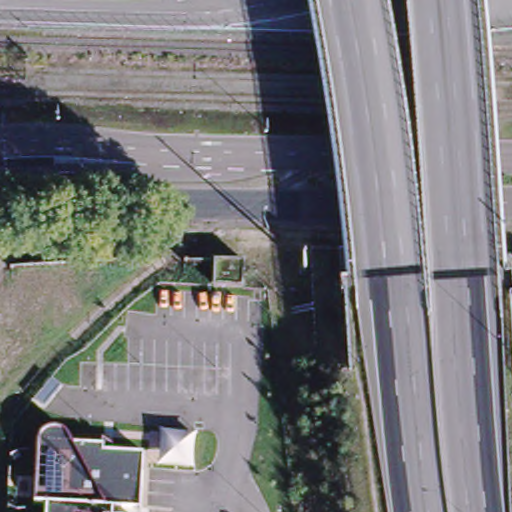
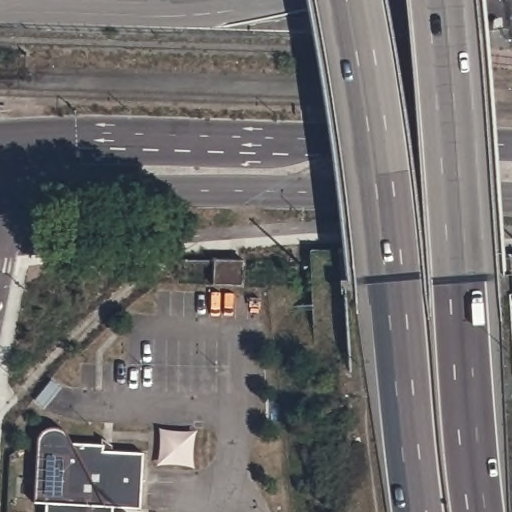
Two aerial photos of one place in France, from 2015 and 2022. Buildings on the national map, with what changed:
unchanged [(242,286),(212,286),(212,262),(213,260),(243,260),(242,263),(242,286)]
unchanged [(106,452),(144,455),(140,510),(113,508),(113,512),(47,512),(47,505),(35,503),(40,440),(41,435),(45,432),(50,430),(57,429),(63,430),(67,435),(70,440),(70,443),(107,446),(106,452)]

